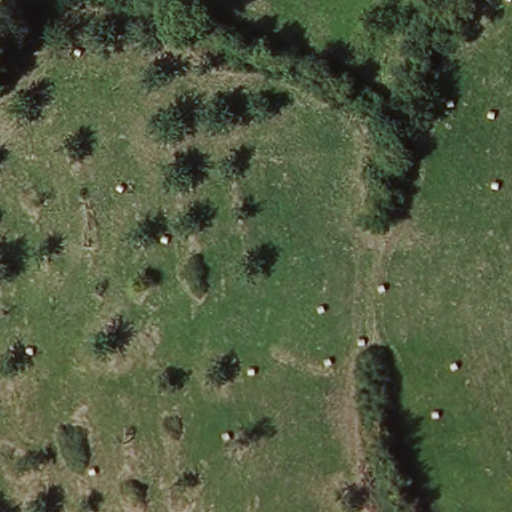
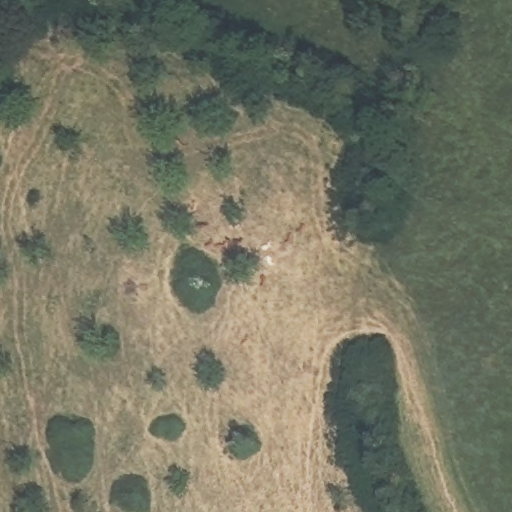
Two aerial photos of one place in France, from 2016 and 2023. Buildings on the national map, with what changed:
[]

